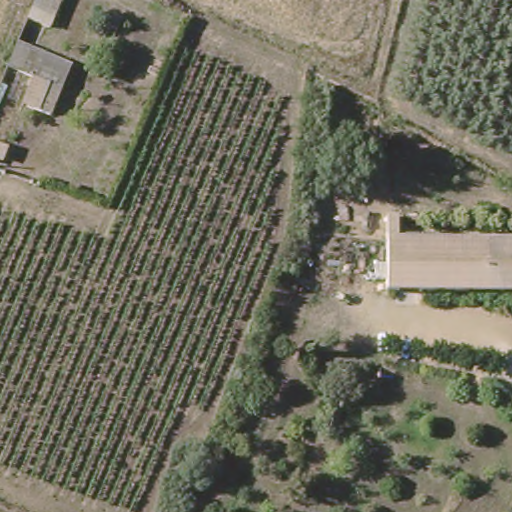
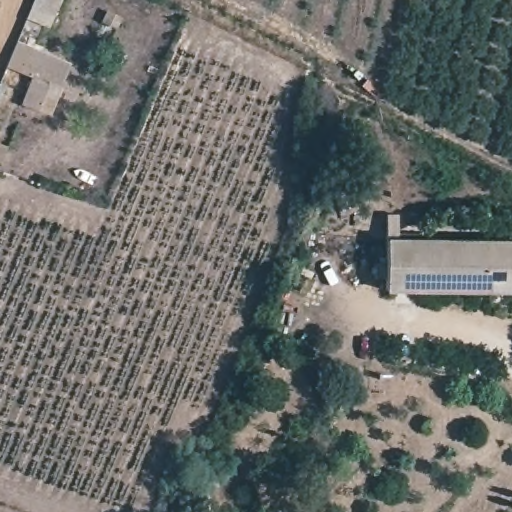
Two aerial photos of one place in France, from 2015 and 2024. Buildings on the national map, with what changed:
unchanged [(23,105),(33,75),(6,65),(16,39),(31,0),(61,0),(52,25),(45,22),(35,45),(72,59),(51,115),(23,105)]
unchanged [(380,288),(381,235),(512,239),(512,292),(380,288)]

